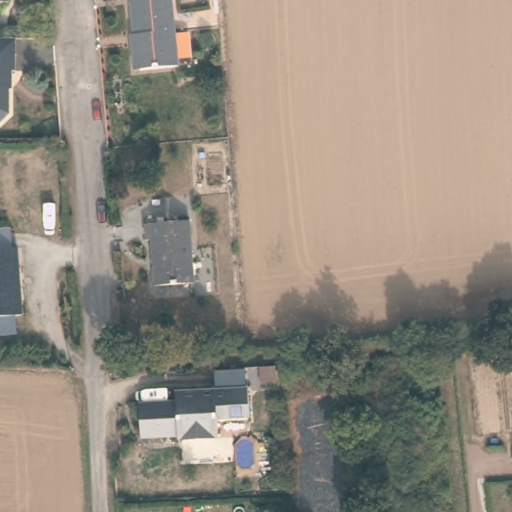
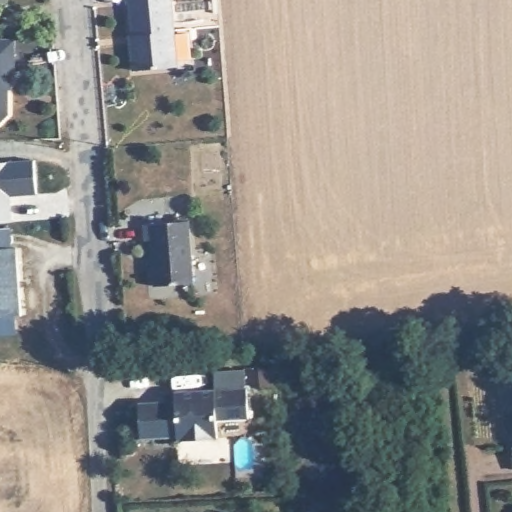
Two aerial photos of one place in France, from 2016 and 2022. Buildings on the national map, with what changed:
unchanged [(0,4),(0,0),(9,0),(9,4),(0,4)]
unchanged [(135,33),(132,0),(173,0),(180,65),(144,68),(134,68),(129,34),(135,33)]
unchanged [(17,69),(15,69),(15,79),(10,79),(10,112),(0,122),(0,36),(16,36),(17,69)]
new [(13,197),(15,222),(0,223),(0,162),(35,161),(40,195),(13,197)]
unchanged [(190,219),(196,280),(156,283),(153,240),(148,240),(146,222),(190,219)]
unchanged [(0,228),(17,227),(19,247),(24,313),(0,315),(0,228)]
unchanged [(145,437),(143,402),(180,401),(179,391),(251,388),(253,418),(221,419),(222,437),(182,439),(182,435),(163,436),(145,437)]

